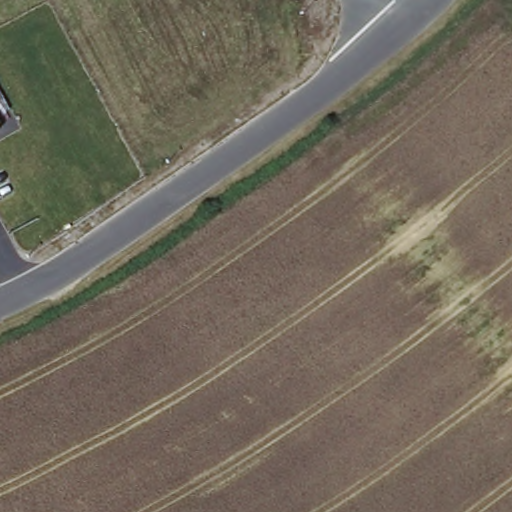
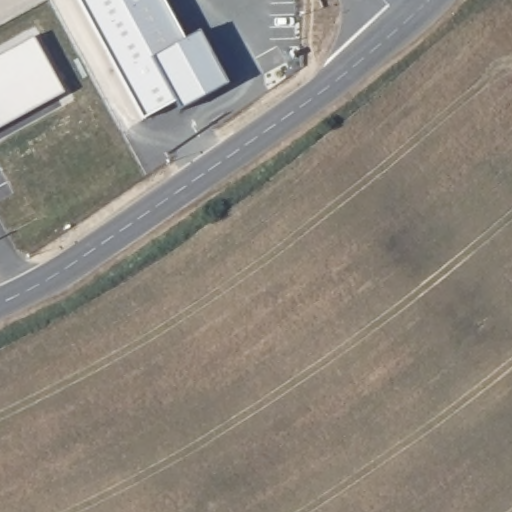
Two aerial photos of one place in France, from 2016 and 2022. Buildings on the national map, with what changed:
new [(201,31),(229,85),(180,111),(175,102),(143,120),(78,0),(164,0),(185,40),(201,31)]

